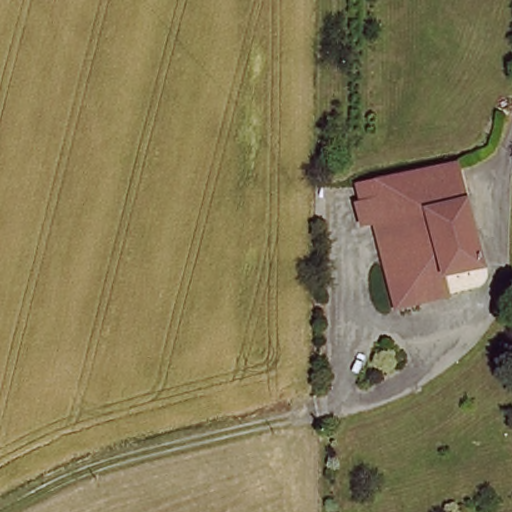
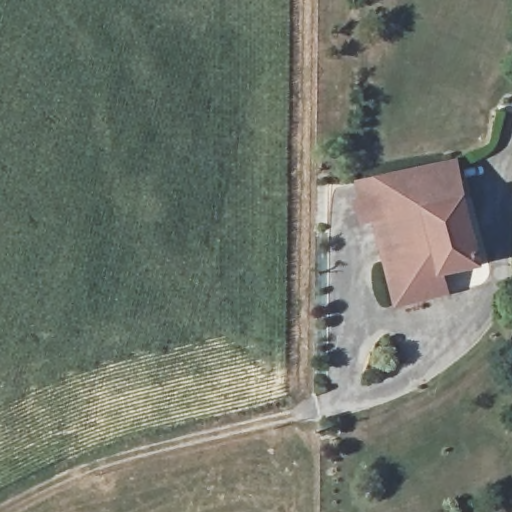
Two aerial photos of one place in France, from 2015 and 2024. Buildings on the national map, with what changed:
unchanged [(446,156),(465,153),(471,187),(462,189),(476,254),(435,262),(431,237),(401,242),(408,285),(383,290),(368,210),(392,205),(385,169),(446,156)]
unchanged [(364,211),(357,174),(385,169),(392,205),(368,210),(364,211)]
unchanged [(439,279),(408,285),(401,242),(431,237),(435,262),(439,279)]

